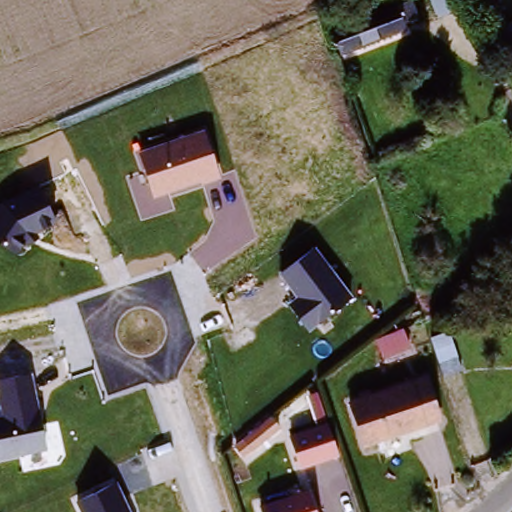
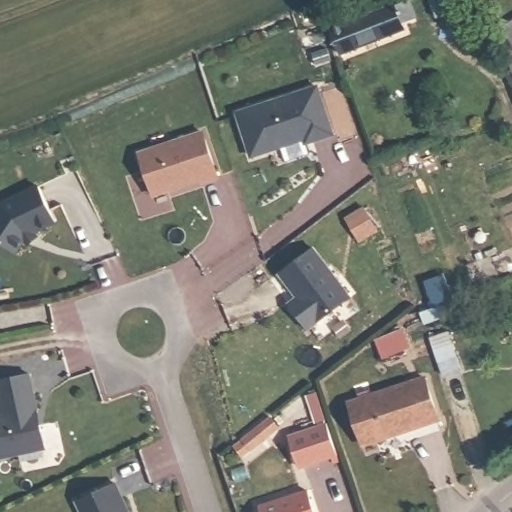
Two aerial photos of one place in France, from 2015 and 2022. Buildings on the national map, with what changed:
unchanged [(453,0),(437,6),(435,0),(453,0)]
unchanged [(408,2),(414,18),(335,50),(331,31),(393,2),(397,7),(408,2)]
unchanged [(507,26),(512,22),(512,33),(507,26)]
unchanged [(510,70),(512,68),(512,74),(510,70)]
new [(312,159),(288,166),(283,149),(254,157),(241,114),(323,90),(337,138),(316,144),(308,146),(312,159)]
unchanged [(137,152),(205,132),(218,176),(152,198),(137,152)]
unchanged [(0,207),(3,202),(40,186),(55,224),(27,235),(15,252),(0,242),(0,207)]
new [(365,208),(377,233),(359,242),(347,216),(365,208)]
unchanged [(287,305),(296,297),(279,272),(315,246),(351,296),(308,332),(287,305)]
unchanged [(432,341),(450,334),(462,373),(443,380),(432,341)]
unchanged [(0,406),(0,379),(32,373),(46,450),(0,459),(0,416),(2,416),(0,406)]
unchanged [(427,386),(438,423),(365,446),(353,408),(427,386)]
unchanged [(290,434),(318,426),(309,393),(317,391),(338,456),(299,468),(290,434)]
unchanged [(267,449),(250,463),(238,448),(257,433),(267,449)]
unchanged [(77,502),(118,484),(131,512),(81,512),(77,502)]
unchanged [(316,512),(262,512),(260,507),(309,493),(316,512)]

